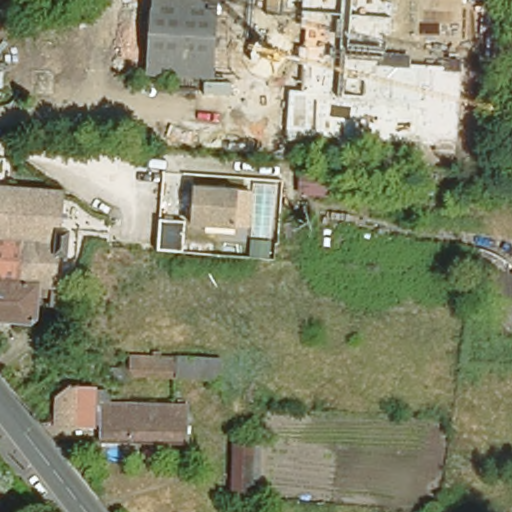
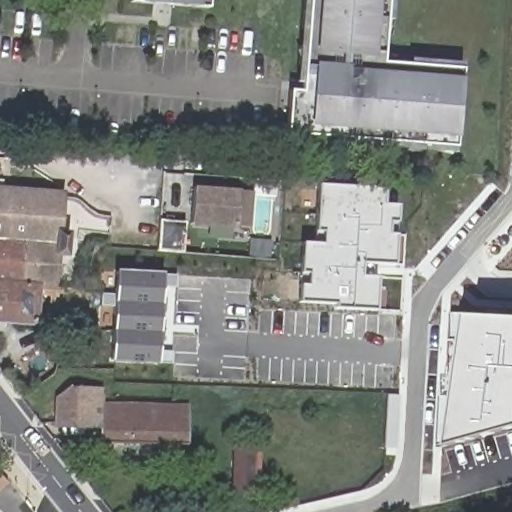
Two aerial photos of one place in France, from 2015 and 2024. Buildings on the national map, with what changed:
demolished [(413,5),(419,6),(413,89),(117,68),(121,0),(359,0),(359,1),(413,5)]
new [(208,0),(207,7),(129,0),(208,0)]
new [(289,90),(301,91),(308,0),(387,0),(382,61),(462,67),(456,147),(285,134),(289,90)]
demolished [(25,64),(46,65),(44,90),(24,88),(25,64)]
new [(334,307),(334,302),(297,301),(298,283),(307,283),(307,273),(299,273),(302,242),(321,243),(321,233),(314,233),(316,183),(385,187),(383,204),(398,205),(397,222),(388,221),(387,233),(396,233),(394,263),(361,261),(360,275),(377,276),(376,308),(334,307)]
unchanged [(232,189),(229,225),(184,222),(187,186),(232,189)]
unchanged [(36,287),(0,285),(0,187),(55,190),(52,235),(61,235),(63,238),(62,258),(58,260),(51,260),(50,288),(36,287)]
new [(158,222),(183,224),(181,254),(156,252),(158,222)]
new [(111,360),(116,270),(161,272),(157,363),(111,360)]
unchanged [(36,287),(35,313),(30,324),(0,323),(0,285),(36,287)]
new [(443,446),(446,373),(453,374),(454,311),(468,312),(512,315),(512,428),(452,444),(443,446)]
demolished [(150,360),(150,356),(159,356),(158,361),(150,360)]
unchanged [(42,382),(21,397),(15,391),(32,369),(39,376),(41,370),(45,373),(42,382)]
unchanged [(97,442),(97,429),(53,428),(54,400),(70,388),(111,389),(111,402),(187,404),(189,445),(97,442)]
unchanged [(259,496),(229,496),(230,440),(261,441),(259,496)]

